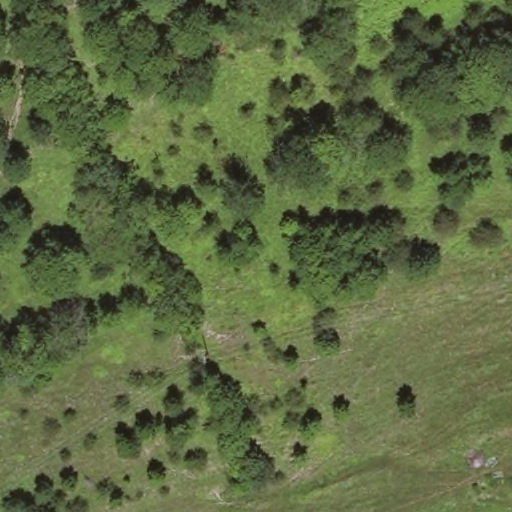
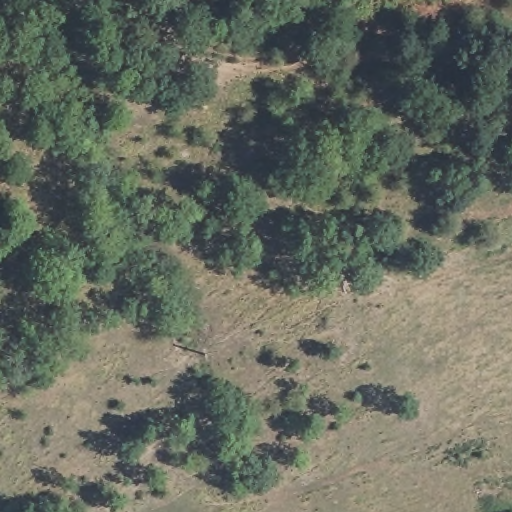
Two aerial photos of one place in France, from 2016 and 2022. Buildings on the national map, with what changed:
[]

